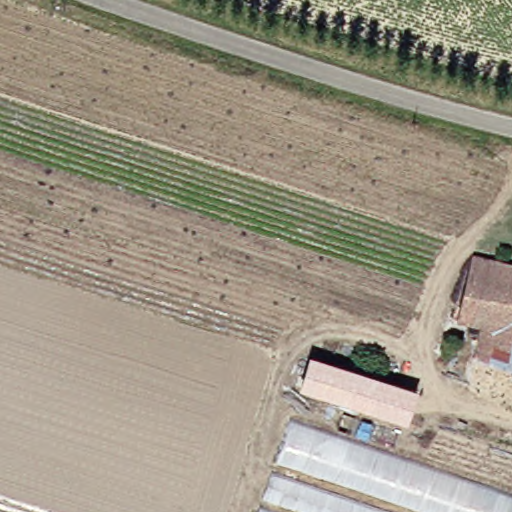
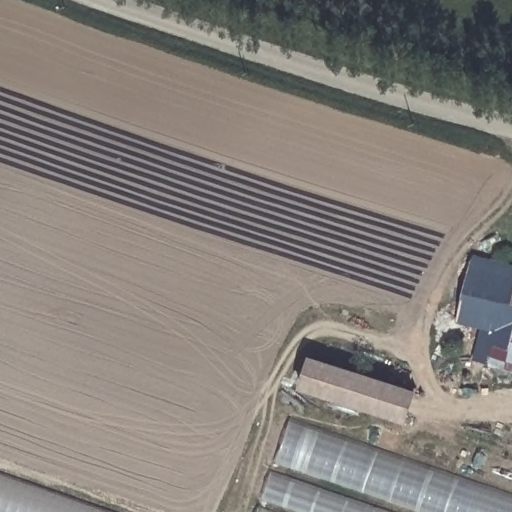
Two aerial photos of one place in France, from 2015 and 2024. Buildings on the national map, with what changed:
unchanged [(457,316),(471,250),(512,259),(512,390),(487,384),(472,381),(486,322),(457,316)]
unchanged [(313,362),(421,388),(415,417),(306,393),(313,362)]
unchanged [(292,417),(512,495),(512,512),(255,512),(292,417)]
new [(116,512),(0,512),(0,471),(116,512)]

